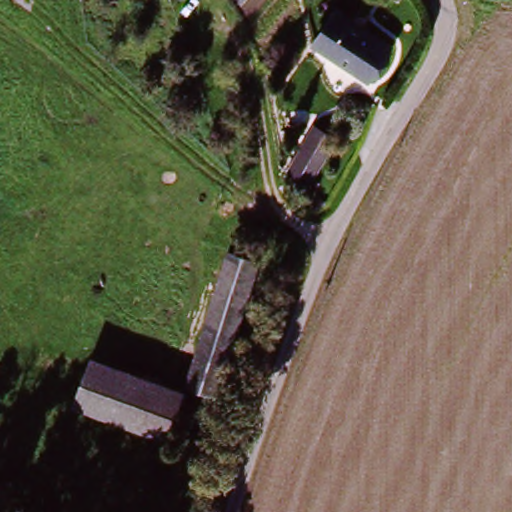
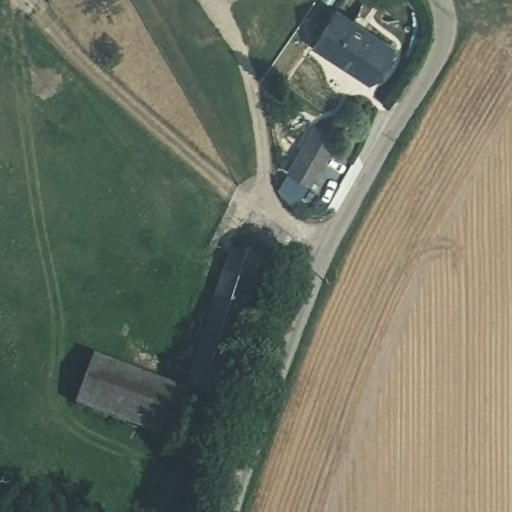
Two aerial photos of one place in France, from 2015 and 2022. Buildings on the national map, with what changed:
unchanged [(328,14),(381,44),(362,80),(309,50),(328,14)]
unchanged [(337,143),(319,179),(296,165),(315,131),(337,143)]
unchanged [(212,396),(180,385),(231,244),(262,256),(212,396)]
unchanged [(172,395),(155,441),(65,407),(82,360),(172,395)]

